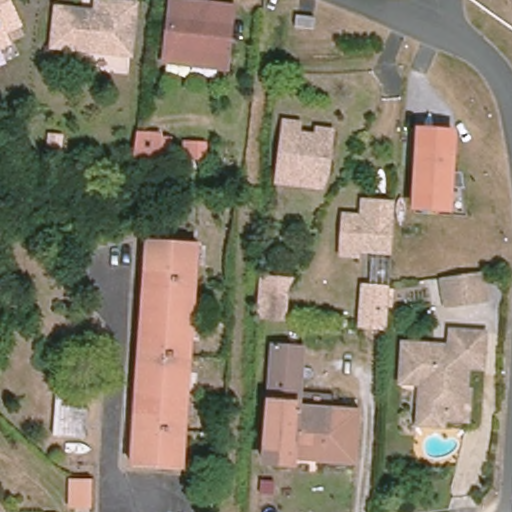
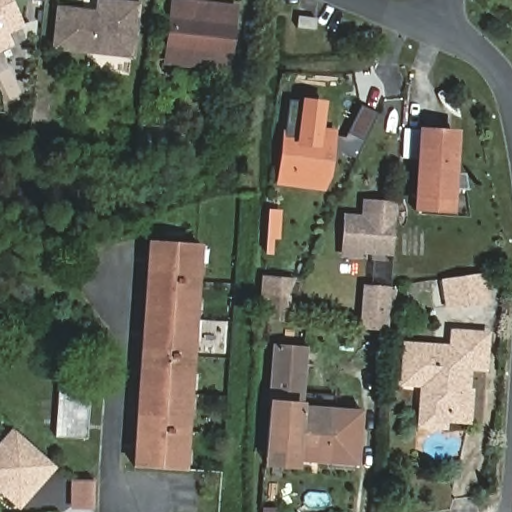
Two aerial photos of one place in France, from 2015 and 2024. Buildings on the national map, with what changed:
unchanged [(0,51),(0,0),(10,0),(22,26),(7,34),(13,46),(0,51)]
unchanged [(133,2),(128,53),(50,44),(55,6),(82,10),(94,11),(95,0),(114,0),(133,2)]
unchanged [(164,52),(168,0),(178,0),(229,6),(223,64),(201,61),(163,57),(164,52)]
unchanged [(270,179),(272,168),(278,119),(295,121),(293,136),(309,139),(311,126),(327,128),(321,175),(316,185),(270,179)]
unchanged [(412,211),(418,127),(460,129),(457,172),(464,173),(466,189),(467,215),(455,213),(412,211)]
unchanged [(172,161),(162,161),(133,158),(136,132),(162,133),(162,137),(173,137),(172,161)]
unchanged [(340,254),(341,239),(342,218),(362,220),(363,202),(394,204),(391,242),(390,252),(357,250),(357,255),(340,254)]
unchanged [(150,242),(201,246),(185,471),(135,467),(150,242)]
unchanged [(392,286),(388,330),(357,329),(362,283),(369,283),(370,260),(394,260),(392,286)]
unchanged [(483,272),(487,299),(449,306),(445,278),(483,272)]
unchanged [(287,320),(261,317),(263,291),(290,294),(287,320)]
unchanged [(412,409),(412,403),(415,374),(401,374),(394,373),(398,338),(400,338),(443,341),(445,325),(475,327),(472,358),(450,357),(449,366),(456,366),(455,385),(459,386),(458,407),(455,406),(451,412),(446,412),(442,405),(434,405),(434,410),(412,409)]
unchanged [(265,456),(275,345),(298,347),(293,406),(359,412),(354,463),(322,460),(294,458),(265,456)]
unchanged [(61,392),(89,394),(86,438),(58,437),(61,392)]
new [(19,511),(0,493),(0,442),(13,428),(57,468),(19,511)]
unchanged [(96,506),(75,506),(75,480),(96,479),(96,506)]

